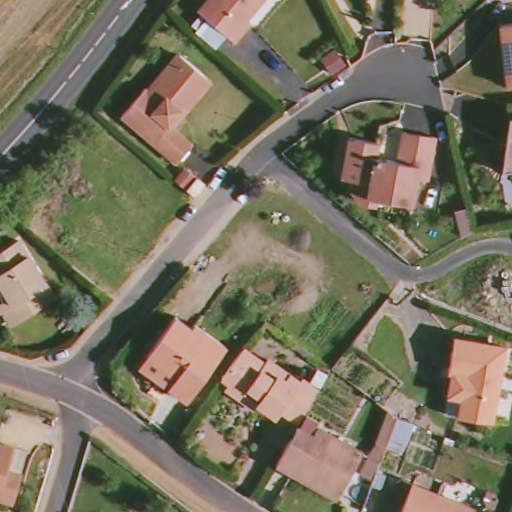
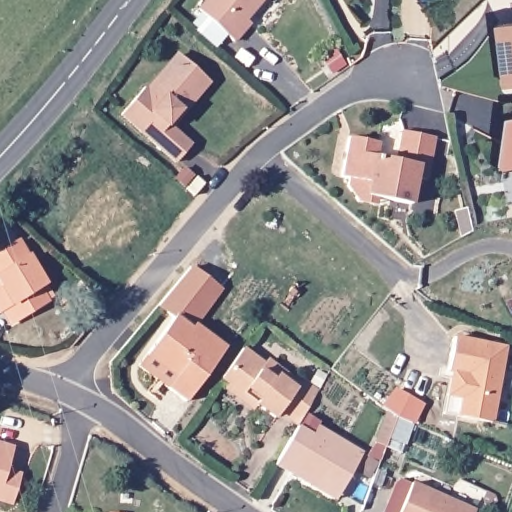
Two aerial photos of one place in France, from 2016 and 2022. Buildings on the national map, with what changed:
unchanged [(234,41),(197,10),(207,0),(263,0),(246,20),(250,22),(245,29),(234,41)]
unchanged [(512,86),(507,87),(500,25),(512,23),(512,86)]
unchanged [(141,90),(151,78),(153,80),(175,55),(198,75),(205,82),(166,127),(187,145),(171,163),(116,115),(140,87),(141,90)]
unchanged [(512,117),(512,170),(496,172),(505,118),(512,117)]
unchanged [(422,180),(411,178),(406,204),(371,197),(370,204),(353,201),(343,185),(345,179),(337,177),(345,137),(373,142),(370,156),(393,160),(398,131),(430,137),(422,180)]
unchanged [(177,170),(186,179),(178,187),(169,180),(177,170)]
unchanged [(191,178),(198,184),(189,195),(182,189),(191,178)]
unchanged [(1,306),(0,307),(0,248),(17,236),(44,279),(39,282),(47,296),(14,317),(10,320),(1,306)]
new [(191,265),(223,289),(196,325),(193,323),(191,328),(175,315),(173,317),(157,305),(191,265)]
unchanged [(186,401),(137,365),(175,315),(191,328),(193,323),(225,347),(186,401)]
unchanged [(451,377),(440,375),(441,366),(448,368),(453,337),(505,347),(491,422),(458,416),(444,413),(451,377)]
unchanged [(220,388),(224,383),(216,377),(237,349),(258,365),(261,360),(294,383),(296,380),(312,392),(293,424),(276,411),(271,417),(251,403),(248,408),(220,388)]
unchanged [(363,456),(371,443),(383,411),(391,417),(406,423),(395,452),(381,446),(380,447),(375,460),(363,456)]
unchanged [(306,485),(270,465),(292,426),(294,427),(302,415),(315,423),(312,427),(357,453),(335,491),(330,500),(306,485)]
unchanged [(8,448),(2,470),(16,475),(8,504),(0,502),(0,445),(8,448)]
unchanged [(470,510),(469,512),(394,512),(406,483),(470,510)]

